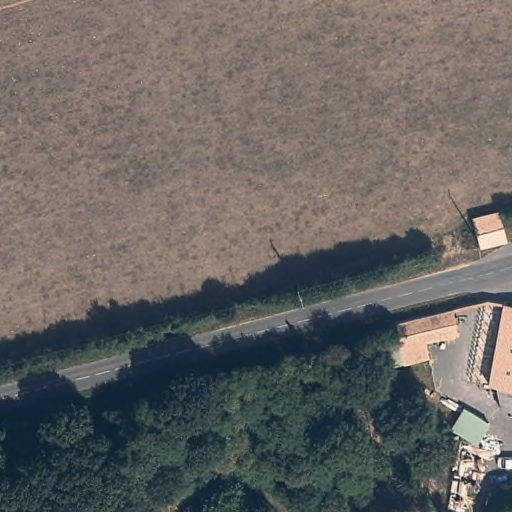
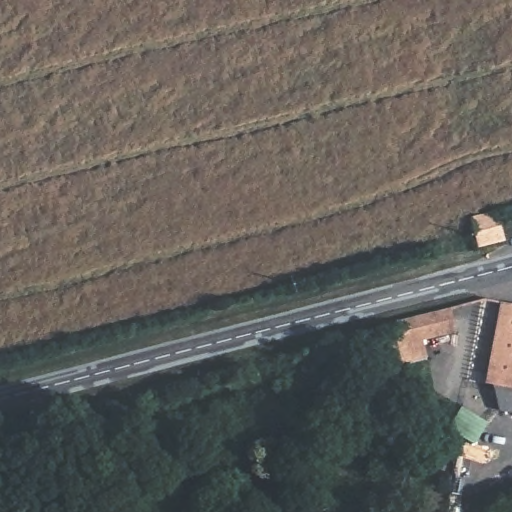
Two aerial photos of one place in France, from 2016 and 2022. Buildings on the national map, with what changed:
unchanged [(499,220),(505,245),(506,250),(478,255),(477,251),(472,226),(499,220)]
unchanged [(512,309),(512,392),(489,388),(503,307),(512,309)]
unchanged [(402,334),(400,322),(455,308),(461,332),(429,340),(433,357),(408,363),(408,360),(381,366),(375,340),(402,334)]

